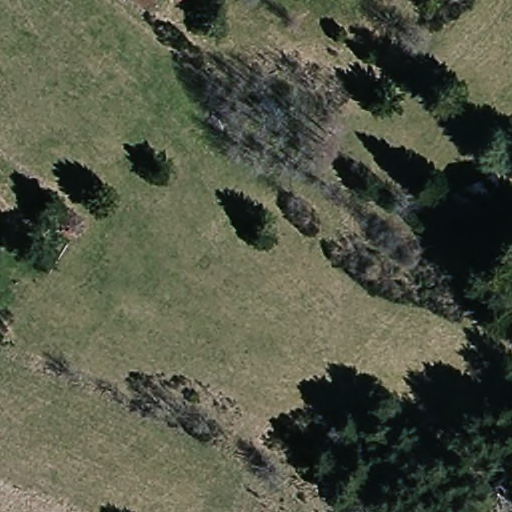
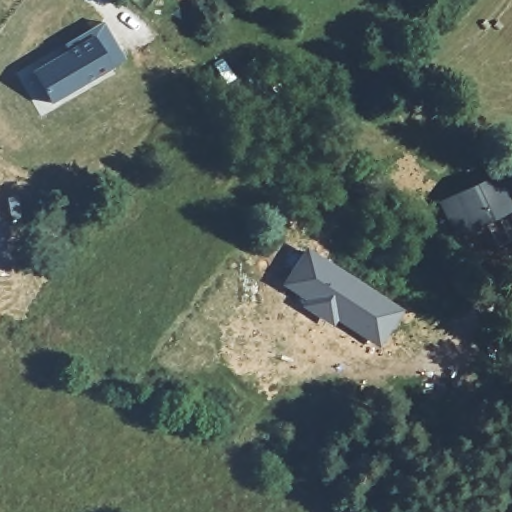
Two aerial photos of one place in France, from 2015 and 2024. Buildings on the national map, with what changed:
unchanged [(179,0),(184,0),(179,1),(179,0)]
new [(93,35),(107,59),(119,51),(124,59),(111,66),(50,103),(31,71),(93,35)]
unchanged [(499,175),(512,203),(512,211),(463,235),(446,200),(499,175)]
new [(379,347),(336,320),(333,326),(301,306),(305,300),(281,284),(305,246),(403,309),(379,347)]

